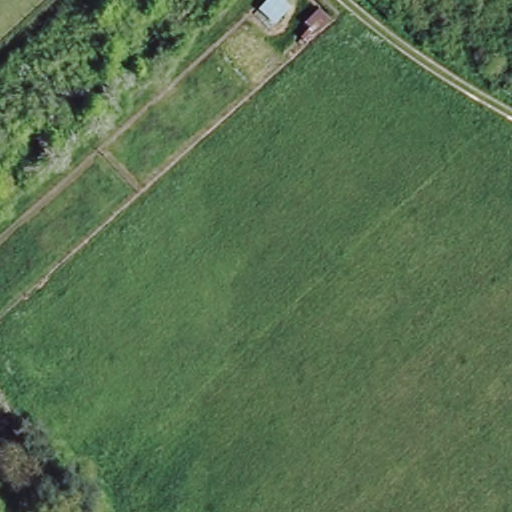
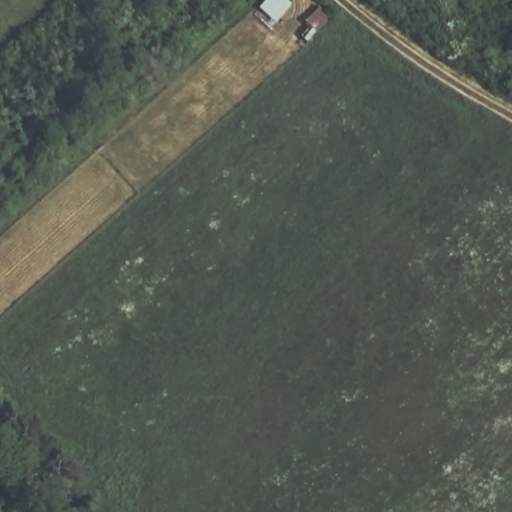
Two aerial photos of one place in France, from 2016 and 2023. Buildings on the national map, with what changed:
unchanged [(280,24),(261,8),(266,0),(288,0),(295,6),(280,24)]

